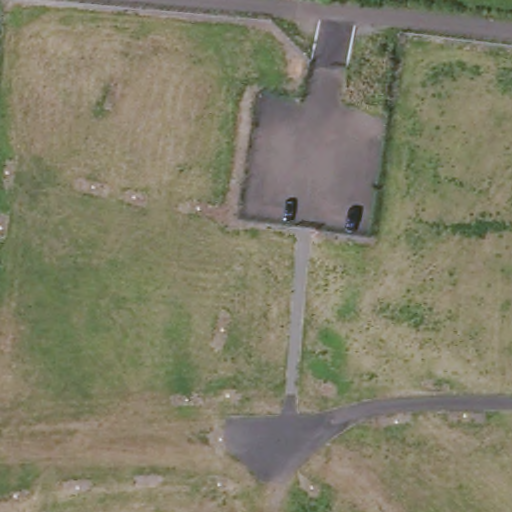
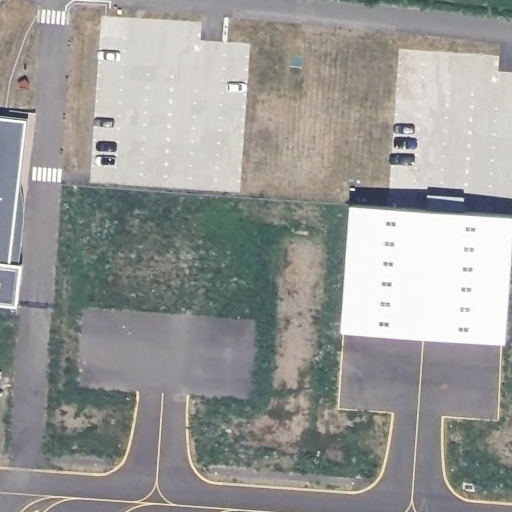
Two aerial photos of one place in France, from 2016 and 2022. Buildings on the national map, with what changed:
new [(349,213),(507,219),(503,340),(346,333),(349,213)]

